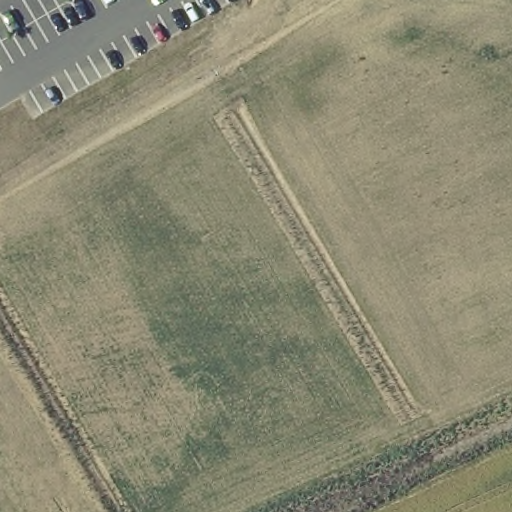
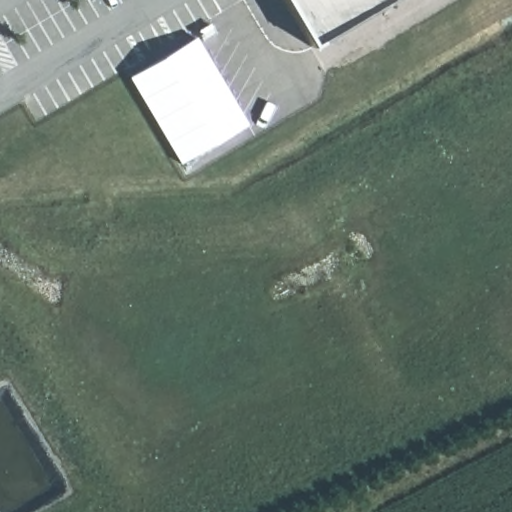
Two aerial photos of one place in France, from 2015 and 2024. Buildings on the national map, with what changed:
new [(280,0),(384,0),(307,45),(280,0)]
new [(197,38),(246,124),(180,163),(128,78),(197,38)]

